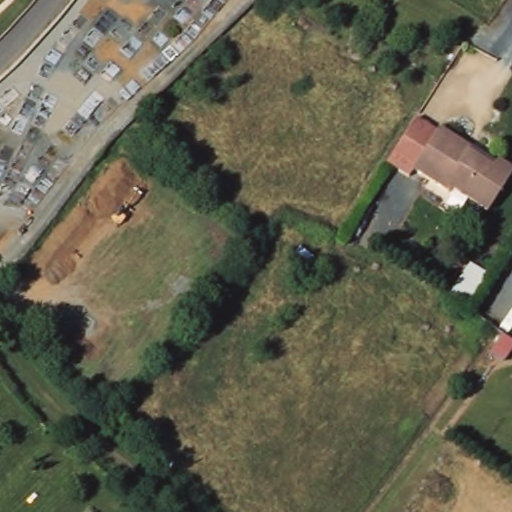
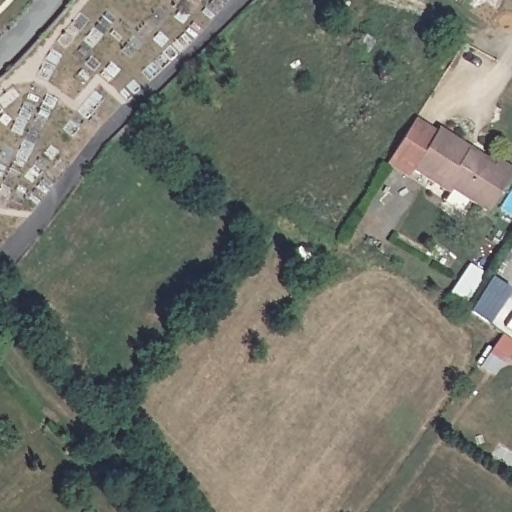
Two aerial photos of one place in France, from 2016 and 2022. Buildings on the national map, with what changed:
unchanged [(421,117),(440,130),(442,127),(473,147),(472,149),(497,166),(501,160),(512,167),(512,179),(491,212),(456,189),(452,194),(416,170),(413,173),(393,161),(421,117)]

